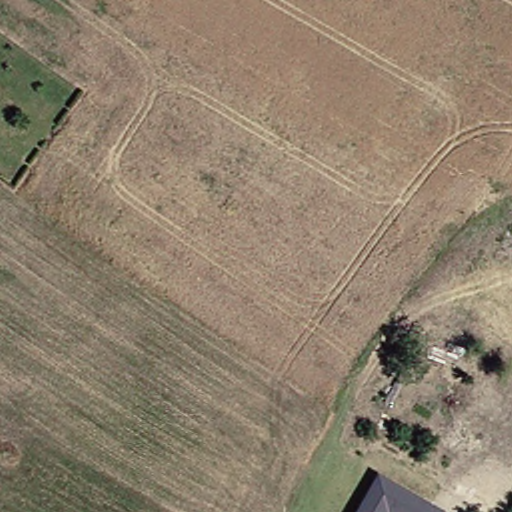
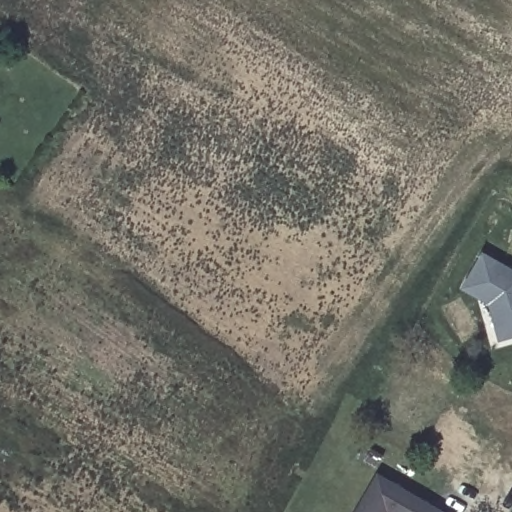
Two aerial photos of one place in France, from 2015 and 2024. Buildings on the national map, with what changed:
new [(512,269),(512,333),(501,336),(491,301),(464,287),(483,253),(512,269)]
unchanged [(383,512),(354,512),(376,475),(439,512),(391,512),(385,509),(383,512)]

